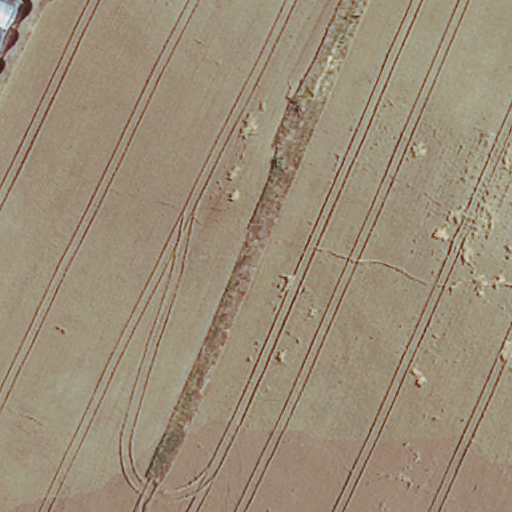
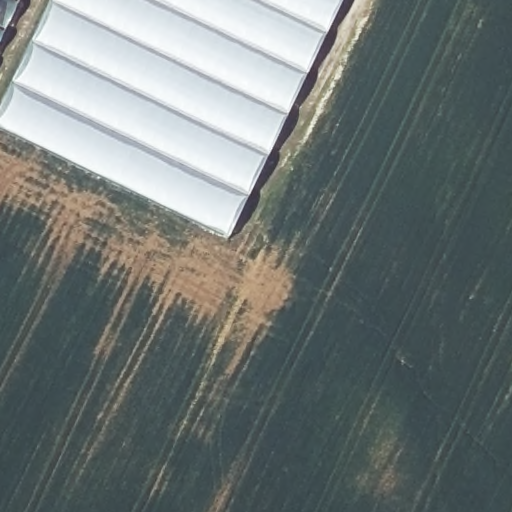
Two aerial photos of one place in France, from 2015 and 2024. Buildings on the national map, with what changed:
unchanged [(24,0),(0,51),(0,0),(24,0)]
new [(51,0),(344,0),(228,240),(70,165),(0,130),(0,105),(33,37),(51,0)]
demolished [(512,0),(512,141),(349,59),(373,0),(512,0)]

